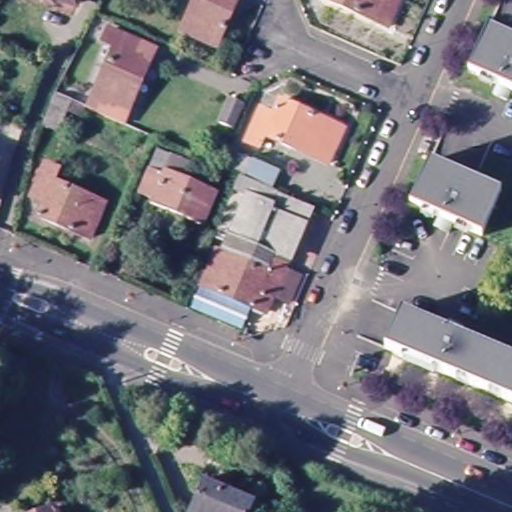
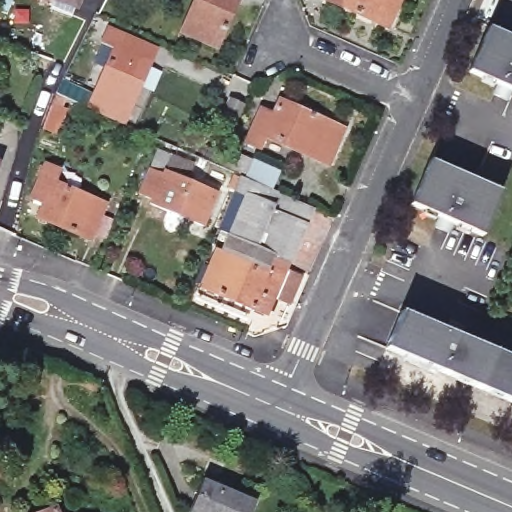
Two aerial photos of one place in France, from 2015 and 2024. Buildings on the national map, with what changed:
unchanged [(38,0),(84,0),(78,15),(38,0)]
unchanged [(178,33),(192,0),(237,0),(214,50),(178,33)]
unchanged [(320,0),(396,0),(384,28),(320,0)]
unchanged [(144,60),(117,122),(90,110),(94,101),(87,97),(111,46),(98,40),(105,26),(107,19),(136,32),(133,39),(128,52),(144,60)]
unchanged [(503,86),(474,73),(493,29),(512,38),(512,101),(499,95),(503,86)]
unchanged [(37,142),(42,128),(54,97),(72,105),(90,112),(84,128),(66,120),(60,135),(54,133),(49,146),(37,142)]
unchanged [(232,128),(218,122),(229,99),(242,104),(232,128)]
unchanged [(327,168),(262,139),(255,152),(241,146),(257,111),(271,118),(278,103),(343,133),(327,168)]
unchanged [(242,180),(240,180),(218,170),(226,154),(250,164),(252,160),(280,173),(271,193),(255,186),(242,180)]
unchanged [(0,169),(0,161),(2,162),(0,169)]
unchanged [(481,237),(453,225),(449,234),(435,228),(439,219),(410,206),(428,162),(500,193),(481,237)]
unchanged [(61,187),(111,208),(96,243),(46,222),(52,207),(39,201),(53,169),(66,175),(61,187)]
unchanged [(202,226),(152,204),(153,200),(138,193),(148,169),(163,175),(166,171),(216,193),(202,226)]
unchanged [(284,271),(301,278),(289,306),(273,299),(265,316),(202,289),(203,285),(195,281),(203,263),(212,267),(227,234),(232,236),(248,199),(234,193),(240,180),(242,180),(255,186),(271,193),(311,211),(288,262),(285,269),(284,271)]
unchanged [(404,312),(446,330),(450,320),(464,326),(460,336),(512,359),(512,403),(387,350),(404,312)]
unchanged [(251,512),(191,512),(203,482),(255,503),(251,512)]
unchanged [(49,505),(52,512),(32,512),(49,505)]

